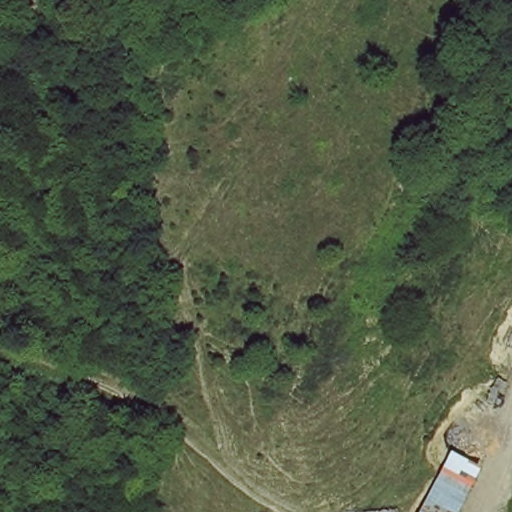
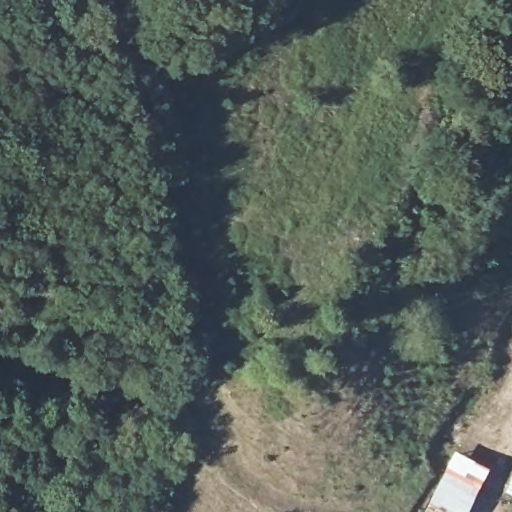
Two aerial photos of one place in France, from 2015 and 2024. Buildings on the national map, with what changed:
new [(463,512),(422,512),(456,452),(485,467),(463,512)]

